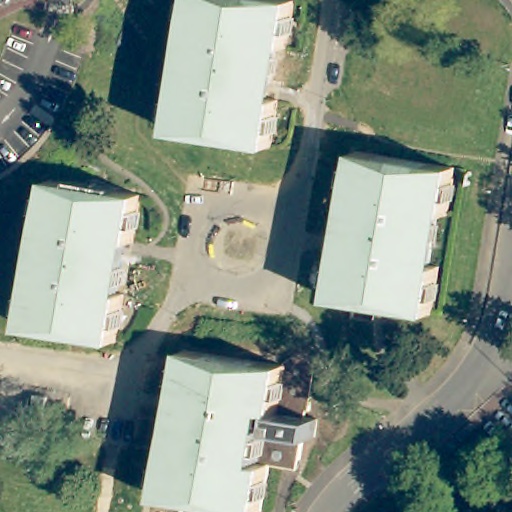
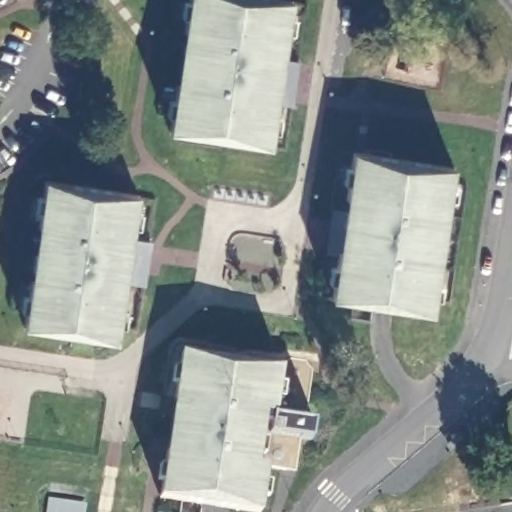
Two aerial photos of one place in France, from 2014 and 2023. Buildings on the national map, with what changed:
unchanged [(290,5),(283,50),(273,49),(265,101),(274,102),(267,148),(169,133),(176,87),(185,88),(192,37),(184,36),(189,0),(262,0),(290,5)]
unchanged [(450,167),(444,211),(435,210),(426,263),(436,264),(429,312),(331,297),(337,251),(346,252),(354,199),(345,198),(353,152),(450,167)]
unchanged [(139,203),(132,250),(124,249),(117,295),(125,296),(117,342),(28,328),(34,284),(42,285),(49,238),(40,237),(47,189),(139,203)]
unchanged [(274,410),(273,413),(265,412),(265,415),(261,435),(261,436),(257,465),(265,466),(265,469),(259,512),(239,512),(229,511),(160,500),(166,455),(176,456),(180,428),(184,403),(175,401),(180,361),(181,357),(252,367),(280,371),(275,406),(274,410)]
unchanged [(265,466),(257,465),(261,436),(261,435),(265,415),(265,412),(273,413),(274,410),(275,406),(280,371),(280,367),(280,366),(290,360),(305,362),(312,372),(313,373),(312,377),(307,410),(306,413),(305,413),(303,421),(315,423),(313,438),(312,442),(301,441),(297,464),(295,473),(265,469),(265,466)]
new [(82,505),(81,512),(48,512),(50,500),(82,505)]

